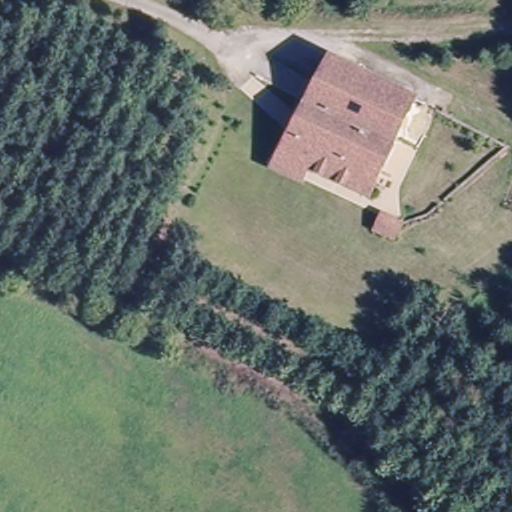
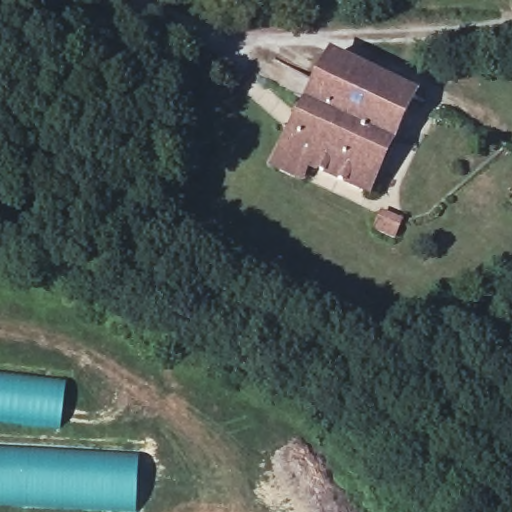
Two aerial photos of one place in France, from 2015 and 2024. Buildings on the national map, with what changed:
unchanged [(413,99),(354,209),(332,200),(322,185),(325,177),(282,149),(335,51),(413,99)]
unchanged [(366,212),(385,221),(383,237),(361,230),(366,212)]
new [(68,380),(61,430),(0,423),(0,371),(68,380)]
new [(64,446),(140,452),(138,512),(0,504),(0,444),(64,446)]

